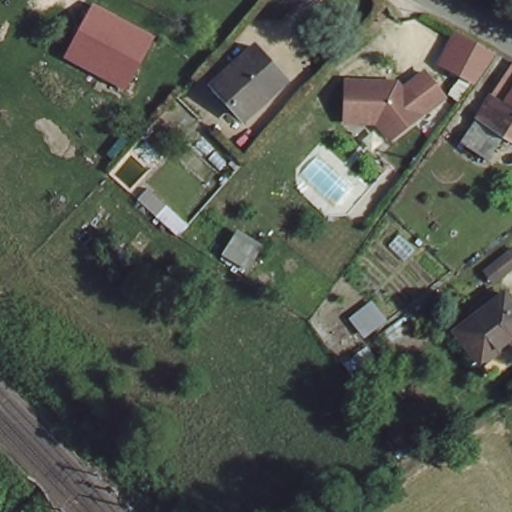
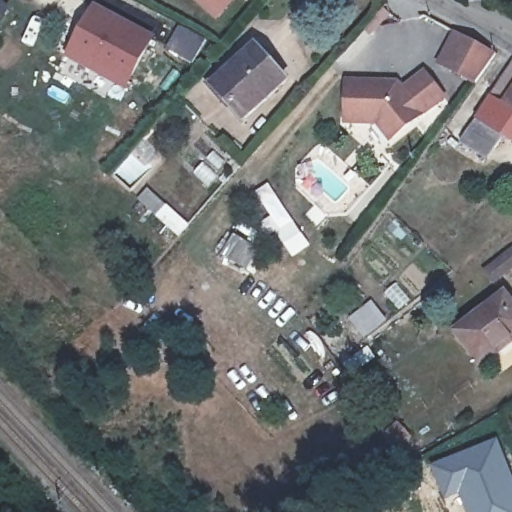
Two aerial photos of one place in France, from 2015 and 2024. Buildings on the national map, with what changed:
unchanged [(207,0),(223,0),(217,8),(207,0)]
unchanged [(155,36),(126,91),(65,59),(94,3),(155,36)]
unchanged [(455,27),(494,48),(473,76),(434,55),(455,27)]
unchanged [(289,82),(252,120),(219,88),(259,50),(289,82)]
unchanged [(511,57),(512,58),(512,147),(507,143),(495,169),(462,148),(511,57)]
unchanged [(342,75),(392,77),(398,84),(420,66),(439,91),(386,133),(373,116),(341,115),(342,75)]
unchanged [(487,258),(511,240),(512,241),(512,261),(496,272),(487,258)]
unchanged [(508,295),(512,300),(512,342),(485,363),(460,331),(508,295)]
new [(398,420),(418,446),(402,460),(381,434),(398,420)]
new [(512,476),(512,512),(464,512),(457,495),(442,500),(429,466),(497,437),(512,476)]

